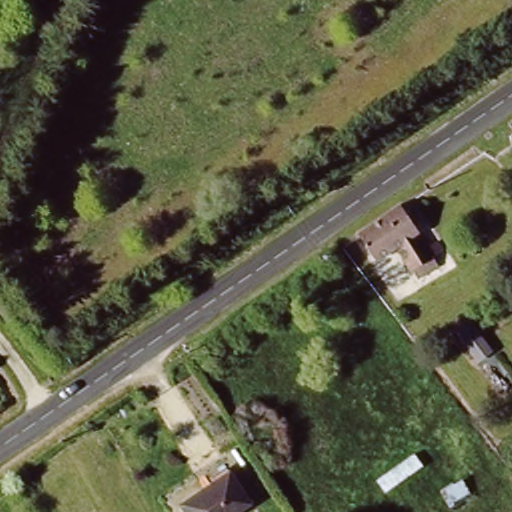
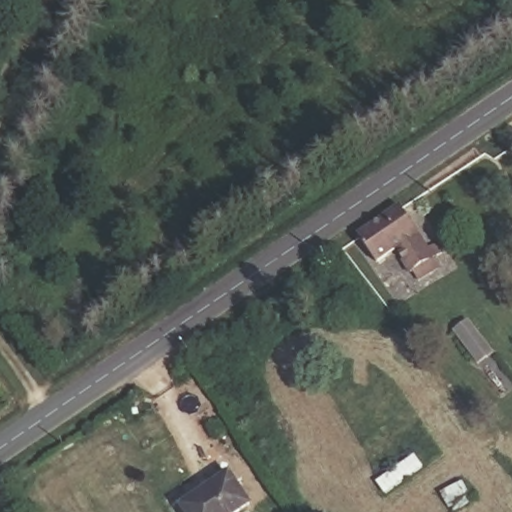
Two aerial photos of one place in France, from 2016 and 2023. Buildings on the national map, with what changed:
unchanged [(430,234),(438,228),(450,246),(441,252),(452,266),(424,285),(400,251),(377,267),(358,241),(410,206),(430,234)]
unchanged [(423,345),(434,360),(407,379),(396,364),(423,345)]
unchanged [(240,512),(186,512),(180,503),(232,468),(255,502),(240,512)]

